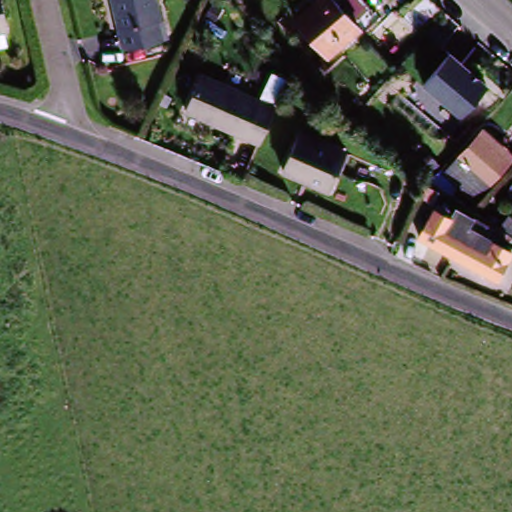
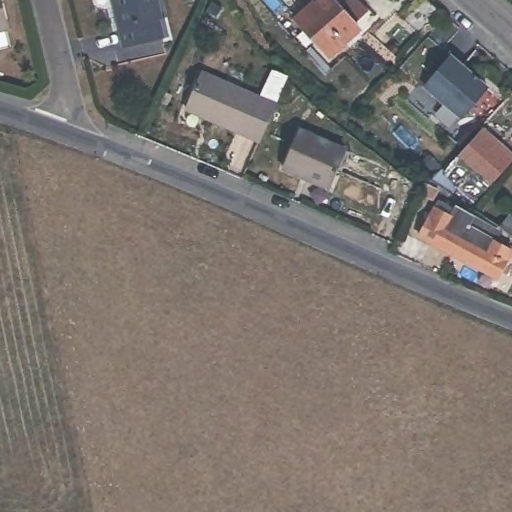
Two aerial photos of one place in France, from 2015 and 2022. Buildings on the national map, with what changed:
unchanged [(6,29),(11,46),(0,48),(0,0),(3,0),(9,28),(6,29)]
unchanged [(113,0),(157,0),(163,20),(157,22),(162,40),(142,46),(127,50),(122,32),(113,0)]
unchanged [(310,0),(341,0),(360,25),(329,49),(298,10),(310,0)]
unchanged [(424,0),(431,0),(441,12),(418,32),(405,17),(424,0)]
unchanged [(296,36),(302,31),(328,66),(322,71),(296,36)]
unchanged [(492,87),(467,117),(431,87),(456,57),(492,87)]
unchanged [(205,71),(256,97),(274,62),(288,67),(252,142),(186,109),(205,71)]
unchanged [(494,201),(488,207),(440,174),(448,165),(452,167),(482,131),(488,125),(512,144),(512,161),(487,194),(494,201)]
unchanged [(329,189),(285,167),(302,131),(347,153),(329,189)]
unchanged [(491,272),(416,233),(430,207),(505,246),(491,272)]
unchanged [(505,227),(512,219),(512,233),(505,227)]

